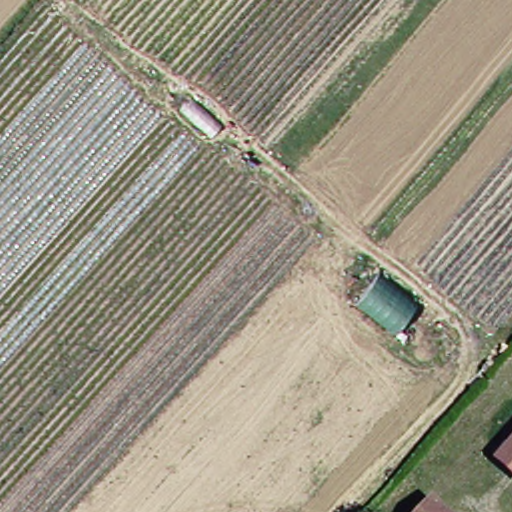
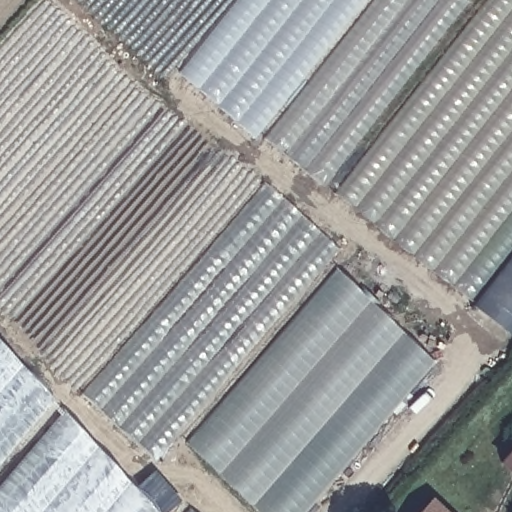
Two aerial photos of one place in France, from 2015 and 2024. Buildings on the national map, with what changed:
new [(254,139),(176,74),(235,0),(365,0),(254,139)]
new [(326,186),(266,141),(375,0),(465,0),(469,2),(326,186)]
new [(470,302),(335,195),(488,0),(512,0),(512,249),(470,302)]
new [(155,461),(79,395),(263,183),(335,248),(155,461)]
new [(509,334),(471,306),(512,254),(512,331),(509,334)]
new [(255,512),(185,443),(335,269),(433,362),(302,512),(255,512)]
new [(0,344),(53,401),(0,462),(0,344)]
new [(0,512),(0,484),(62,411),(134,488),(153,470),(180,501),(170,512),(0,512)]
unchanged [(507,464),(512,459),(512,470),(507,464)]
unchanged [(420,512),(437,495),(454,512),(420,512)]
new [(192,512),(186,512),(189,509),(192,512)]

